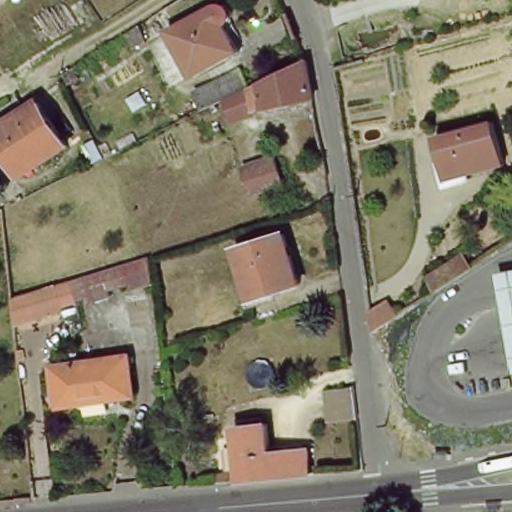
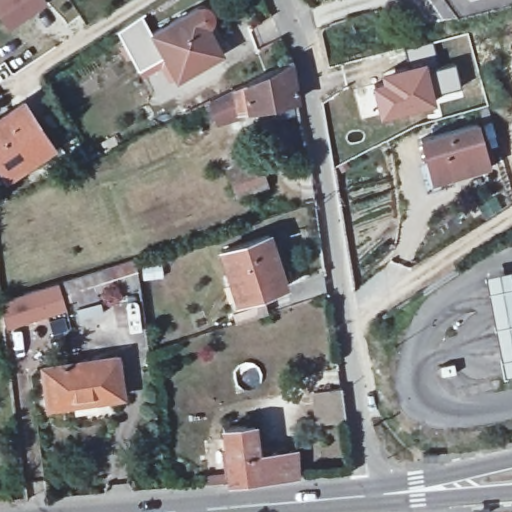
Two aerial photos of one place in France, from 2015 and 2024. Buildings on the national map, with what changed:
new [(0,15),(0,0),(46,0),(48,2),(9,27),(0,15)]
unchanged [(229,59),(183,85),(157,37),(203,12),(204,11),(205,11),(206,11),(207,11),(208,11),(209,11),(211,11),(212,11),(213,11),(213,12),(214,12),(215,12),(216,13),(216,14),(217,14),(217,15),(218,15),(218,16),(218,17),(219,17),(219,18),(219,19),(219,20),(219,21),(220,22),(219,23),(219,24),(219,25),(219,26),(218,27),(217,28),(217,29),(216,29),(216,30),(215,31),(214,31),(229,59)]
new [(157,37),(167,56),(138,71),(117,31),(141,17),(157,37)]
demolished [(130,42),(119,48),(111,36),(124,27),(130,42)]
new [(410,64),(405,47),(432,41),(436,56),(427,59),(436,100),(378,115),(369,77),(410,64)]
new [(460,86),(435,94),(429,68),(454,63),(460,86)]
unchanged [(239,95),(272,79),(297,67),(303,105),(245,117),(246,121),(217,129),(212,114),(213,113),(211,109),(239,95)]
unchanged [(0,161),(0,119),(25,102),(54,146),(9,175),(0,161)]
unchanged [(479,123),(490,166),(442,180),(433,182),(428,162),(421,139),(479,123)]
unchanged [(78,166),(69,148),(80,142),(90,160),(78,166)]
unchanged [(269,187),(238,197),(229,170),(259,160),(269,187)]
unchanged [(270,235),(286,286),(239,301),(222,250),(270,235)]
unchanged [(450,257),(459,272),(425,293),(415,280),(450,257)]
unchanged [(137,258),(141,285),(119,292),(117,286),(97,292),(99,298),(80,304),(78,298),(65,302),(59,282),(137,258)]
unchanged [(504,377),(485,276),(512,270),(512,375),(504,377)]
unchanged [(1,301),(2,301),(59,282),(65,302),(66,304),(52,308),(53,312),(5,326),(1,301)]
unchanged [(384,320),(368,330),(360,334),(358,313),(374,304),(384,320)]
unchanged [(70,365),(119,357),(125,397),(50,408),(44,368),(70,365)]
unchanged [(319,425),(314,392),(342,389),(347,421),(319,425)]
unchanged [(225,424),(256,421),(259,450),(296,447),(299,472),(231,478),(207,480),(206,472),(230,470),(225,424)]

